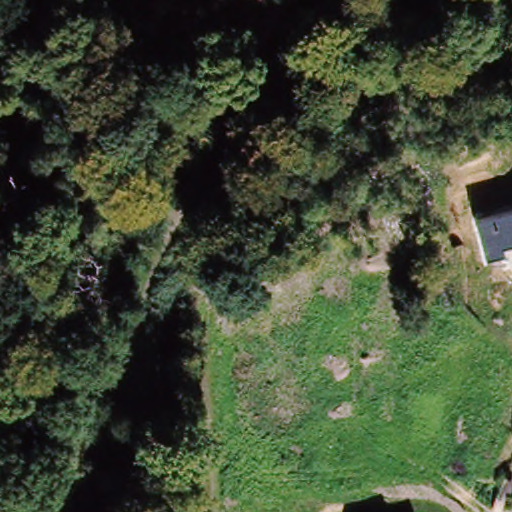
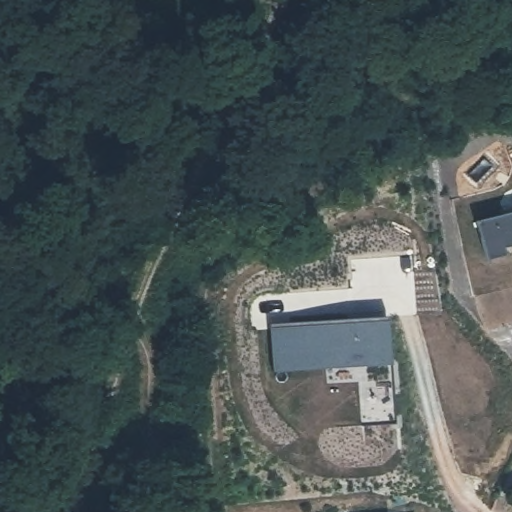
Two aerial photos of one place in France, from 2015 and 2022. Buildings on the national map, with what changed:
unchanged [(507,255),(488,260),(477,220),(512,211),(512,245),(505,247),(507,255)]
new [(365,428),(361,368),(277,373),(277,368),(275,329),(275,325),(388,319),(392,381),(395,426),(365,428)]

